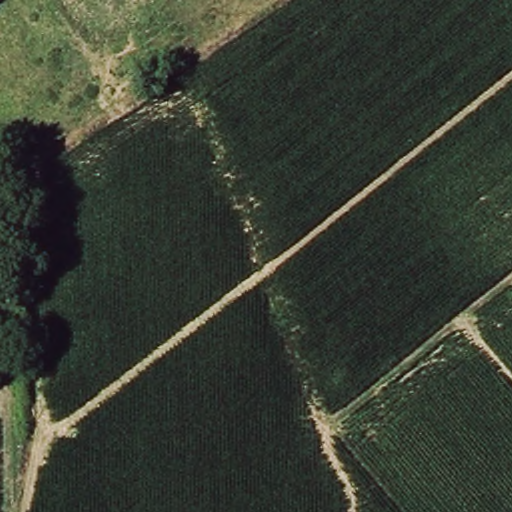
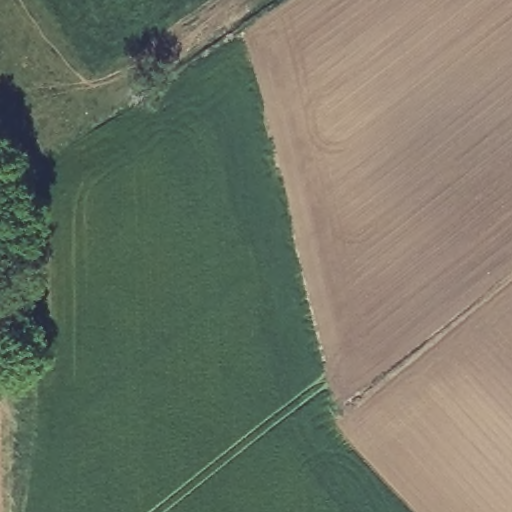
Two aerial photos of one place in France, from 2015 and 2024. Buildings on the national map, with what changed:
[]

